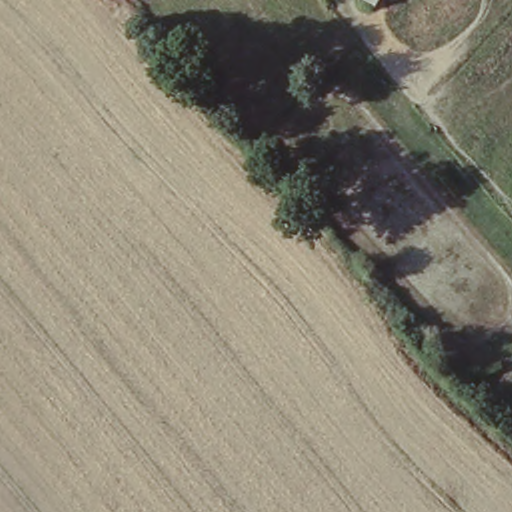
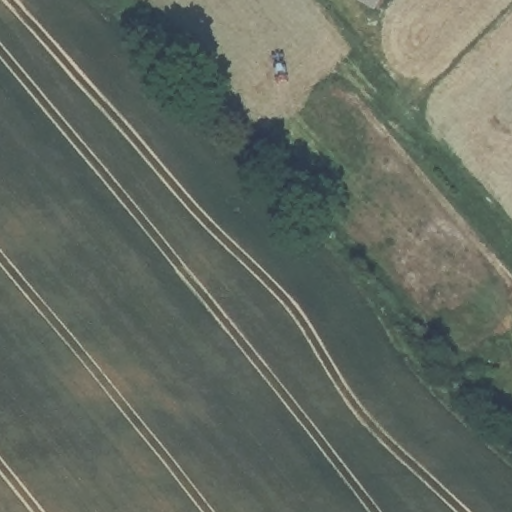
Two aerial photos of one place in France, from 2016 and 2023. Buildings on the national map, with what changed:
[]

